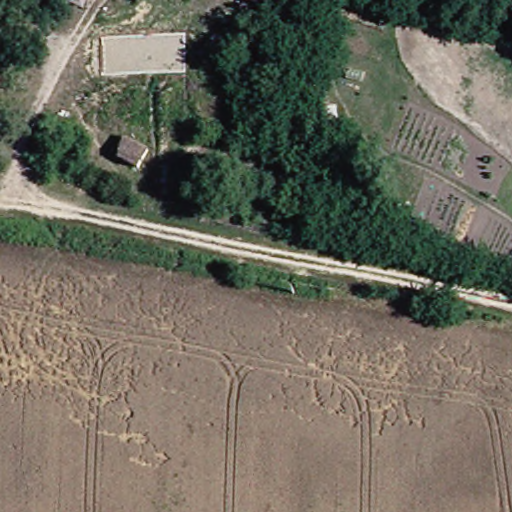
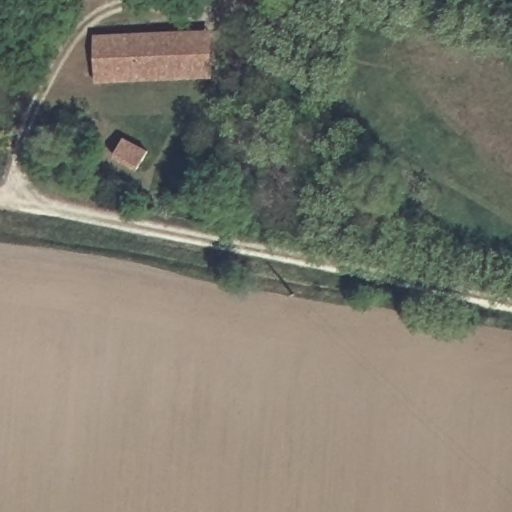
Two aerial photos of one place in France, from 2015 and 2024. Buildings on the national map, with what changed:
new [(95,83),(93,34),(184,29),(185,78),(95,83)]

